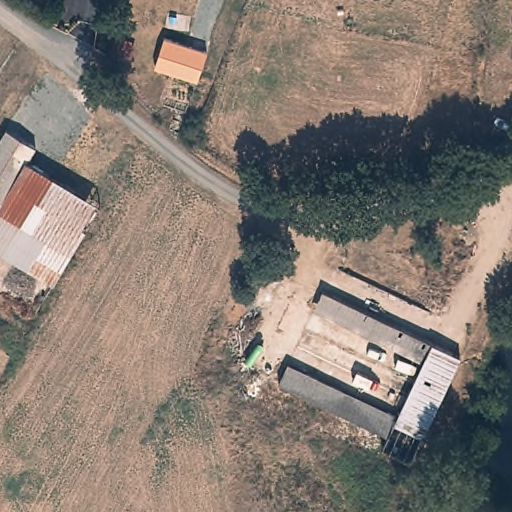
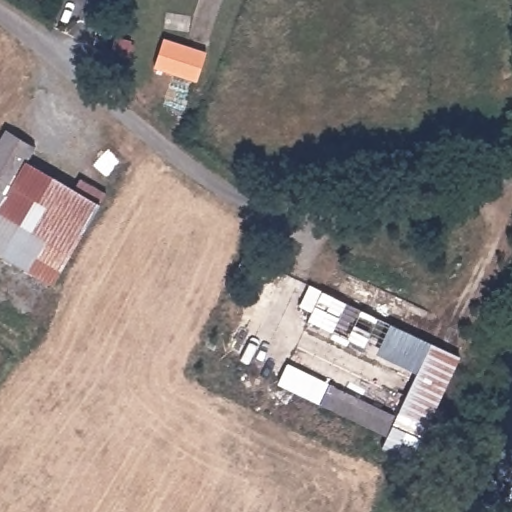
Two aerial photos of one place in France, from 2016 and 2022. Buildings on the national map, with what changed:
unchanged [(164,40),(165,13),(187,16),(182,46),(207,54),(196,86),(153,72),(164,40)]
unchanged [(38,147),(30,163),(0,214),(0,149),(10,132),(38,147)]
unchanged [(105,207),(56,282),(0,254),(0,214),(30,163),(105,207)]
unchanged [(413,460),(383,443),(388,432),(280,380),(290,361),(399,414),(406,397),(297,346),(307,323),(416,376),(423,360),(316,308),(325,289),(462,354),(413,460)]

